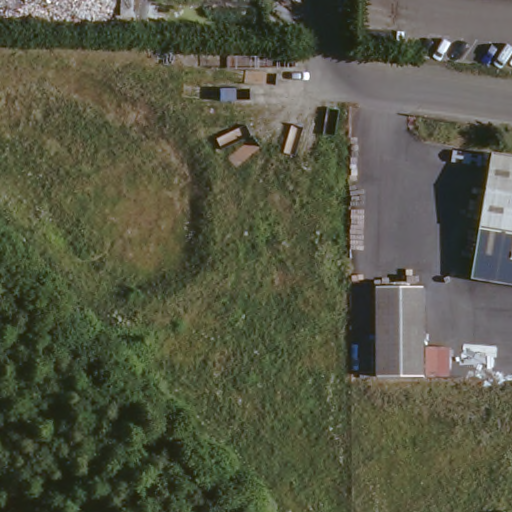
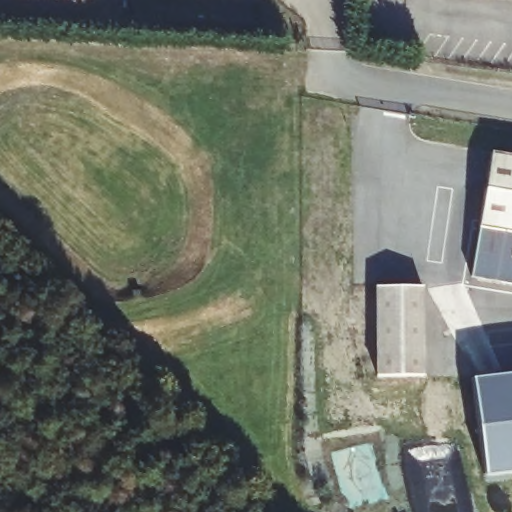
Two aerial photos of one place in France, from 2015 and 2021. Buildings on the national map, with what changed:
unchanged [(486,231),(449,224),(454,196),(481,200),(490,155),(512,158),(512,235),(486,231)]
unchanged [(512,235),(512,281),(477,276),(486,231),(512,235)]
unchanged [(381,288),(425,288),(425,341),(406,341),(380,341),(381,288)]
unchanged [(380,341),(406,341),(425,341),(425,378),(380,377),(380,341)]
new [(473,380),(512,375),(512,474),(484,477),(473,380)]

